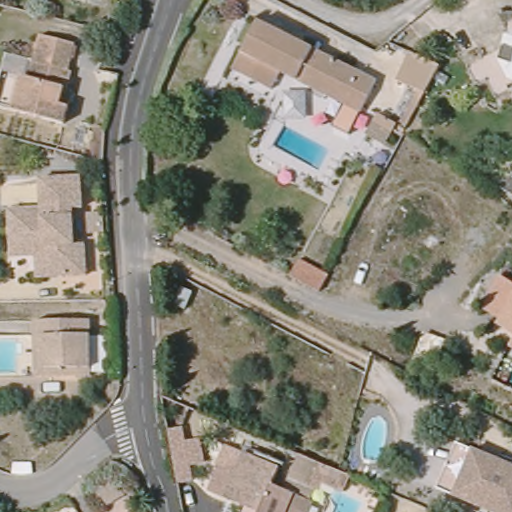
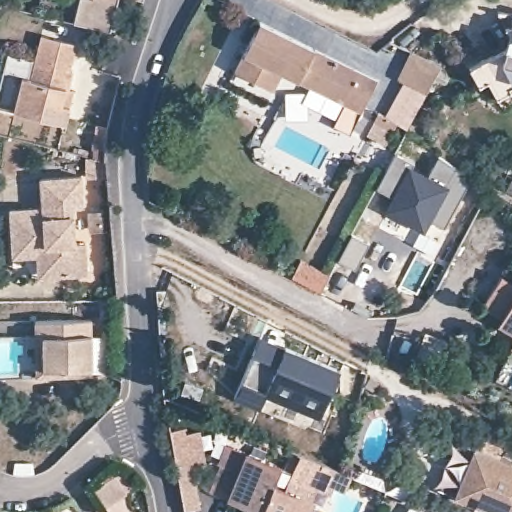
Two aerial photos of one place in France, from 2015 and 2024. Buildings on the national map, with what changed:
new [(118,0),(109,33),(73,23),(78,0),(118,0)]
unchanged [(144,0),(142,6),(141,11),(127,10),(128,0),(144,0)]
unchanged [(497,100),(487,81),(478,86),(468,68),(506,47),(510,36),(497,11),(512,13),(512,91),(497,100)]
unchanged [(360,112),(281,72),(272,90),(234,71),(259,21),(377,80),(360,112)]
unchanged [(30,79),(40,35),(76,45),(69,71),(72,72),(67,90),(65,89),(60,105),(69,106),(65,124),(13,111),(22,76),(30,79)]
unchanged [(402,122),(422,84),(403,75),(416,47),(445,60),(430,88),(410,127),(402,122)]
unchanged [(397,125),(378,116),(383,108),(401,117),(397,125)]
unchanged [(275,119),(283,124),(272,147),(262,142),(275,119)]
unchanged [(107,131),(105,162),(92,159),(95,130),(107,131)]
new [(422,229),(387,210),(393,196),(376,187),(395,152),(412,161),(409,168),(425,176),(437,154),(472,178),(445,228),(450,231),(445,240),(422,228),(427,219),(422,229)]
unchanged [(31,257),(7,257),(7,248),(7,210),(40,210),(40,180),(81,180),(81,211),(70,211),(70,247),(80,247),(80,279),(58,279),(31,279),(31,257)]
new [(300,261),(328,276),(320,292),(292,277),(300,261)]
unchanged [(512,331),(498,323),(501,318),(482,306),(500,275),(512,282),(512,332),(512,331)]
unchanged [(98,300),(110,300),(110,307),(98,307),(98,300)]
unchanged [(38,376),(30,377),(30,337),(29,321),(85,320),(86,339),(101,338),(101,370),(87,371),(87,375),(69,376),(61,376),(38,376)]
unchanged [(425,336),(442,342),(435,365),(417,358),(425,337),(425,336)]
unchanged [(511,346),(512,344),(512,347),(511,346)]
new [(255,348),(280,359),(285,347),(340,370),(321,416),(265,392),(259,406),(234,396),(255,348)]
unchanged [(193,481),(178,483),(169,430),(184,428),(193,481)]
unchanged [(454,485),(437,478),(457,432),(473,439),(512,455),(512,510),(454,485)]
unchanged [(305,450),(324,457),(313,480),(295,472),(305,450)]
unchanged [(247,508),(228,500),(209,492),(220,465),(239,473),(247,453),(281,468),(274,485),(312,501),(308,512),(245,512),(247,508)]
unchanged [(102,507),(91,490),(113,477),(123,494),(102,507)]

